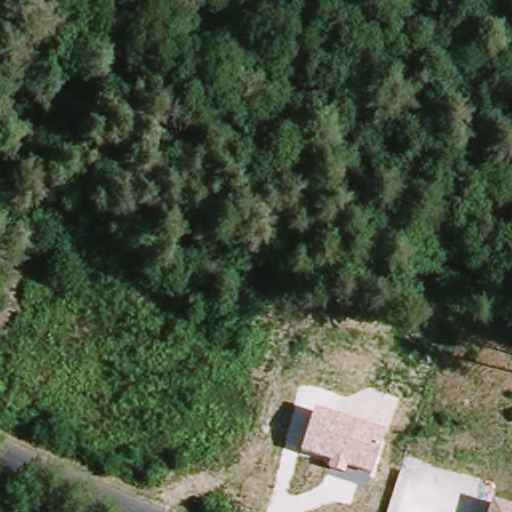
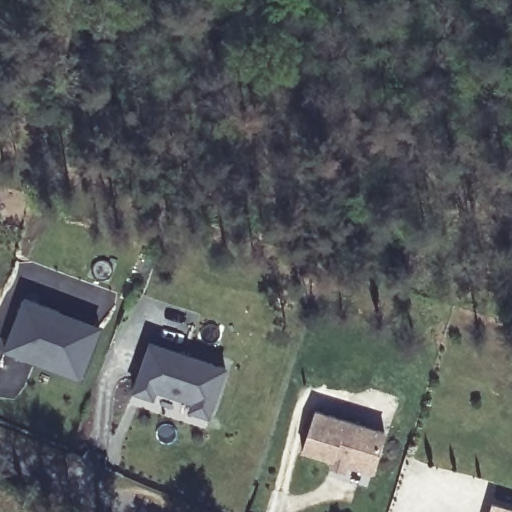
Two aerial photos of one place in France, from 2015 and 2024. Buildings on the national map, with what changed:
new [(25,302),(59,316),(99,332),(95,343),(78,383),(33,365),(4,353),(7,347),(25,302)]
new [(210,421),(187,414),(190,405),(157,393),(154,402),(130,394),(149,340),(227,369),(210,421)]
unchanged [(387,432),(372,476),(300,452),(313,410),(387,432)]
unchanged [(512,512),(488,512),(492,500),(512,506),(512,512)]

